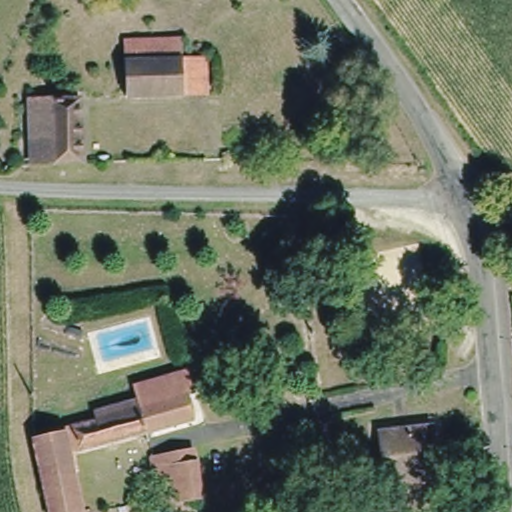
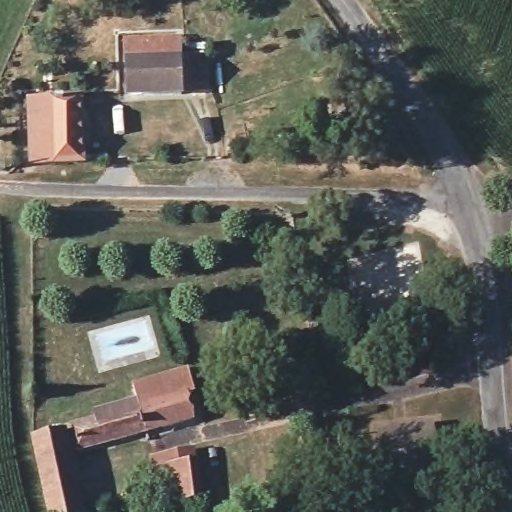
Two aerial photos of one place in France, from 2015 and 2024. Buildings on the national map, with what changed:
unchanged [(125,54),(125,35),(175,36),(175,54),(125,54)]
unchanged [(202,59),(202,95),(127,96),(125,59),(202,59)]
unchanged [(45,161),(45,91),(61,91),(73,91),(71,159),(45,161)]
unchanged [(149,427),(72,450),(84,512),(43,512),(29,443),(54,437),(51,430),(63,425),(101,417),(100,403),(143,389),(140,376),(190,364),(194,377),(186,380),(186,395),(190,417),(149,427)]
unchanged [(434,475),(381,477),(375,426),(430,419),(434,475)]
unchanged [(152,491),(152,458),(198,451),(201,487),(152,498),(152,491)]

